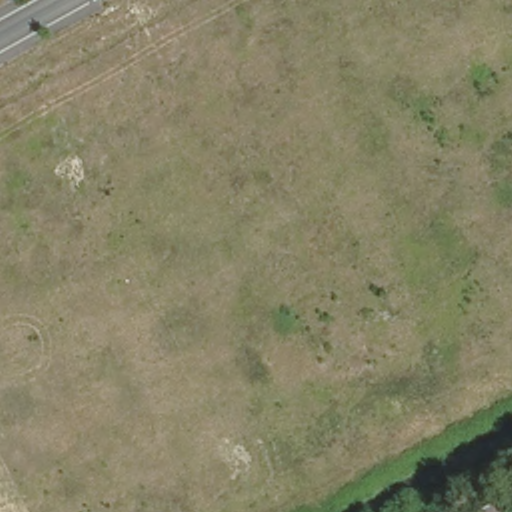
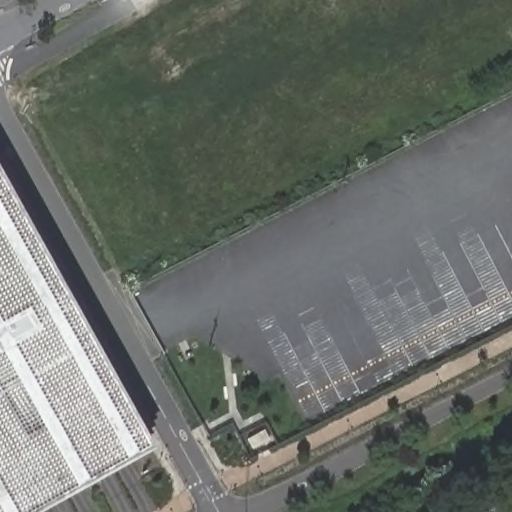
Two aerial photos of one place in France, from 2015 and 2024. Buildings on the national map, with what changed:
new [(0,512),(0,177),(150,448),(35,512),(0,512)]
unchanged [(512,508),(512,512),(483,512),(508,500),(512,508)]

